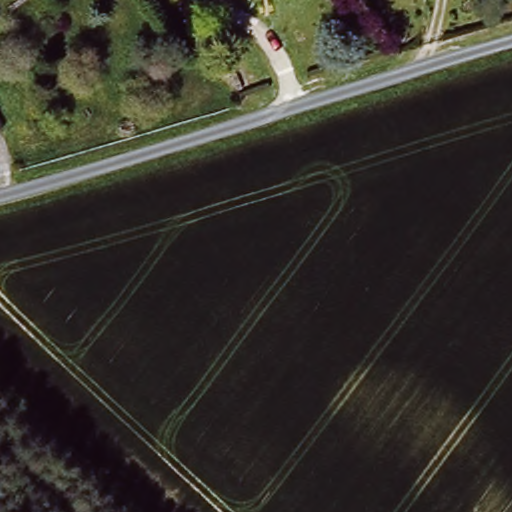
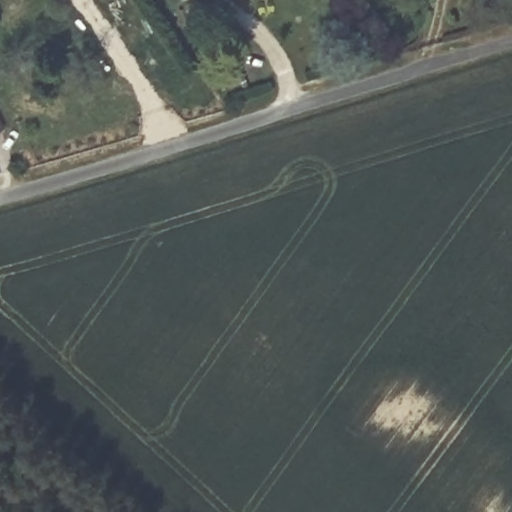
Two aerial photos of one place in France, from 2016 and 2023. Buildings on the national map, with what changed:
unchanged [(0,129),(0,121),(3,127),(0,129)]

